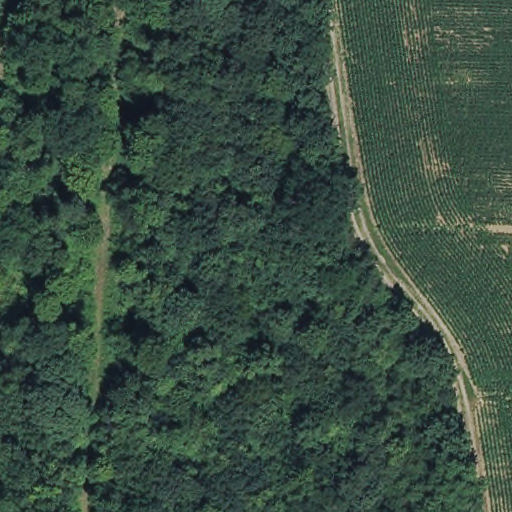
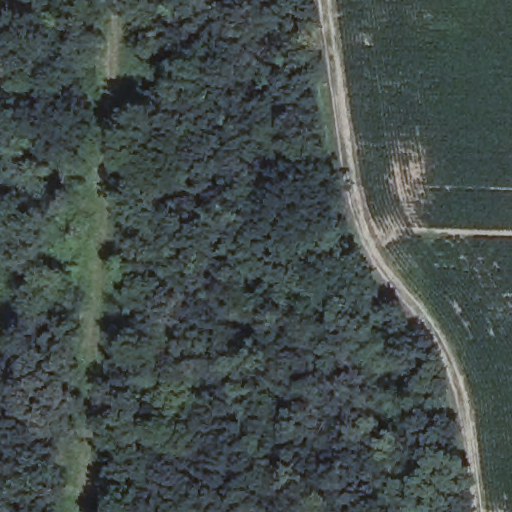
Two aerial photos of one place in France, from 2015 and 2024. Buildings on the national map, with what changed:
unchanged [(10,211),(38,212),(35,239),(8,238),(10,211)]

